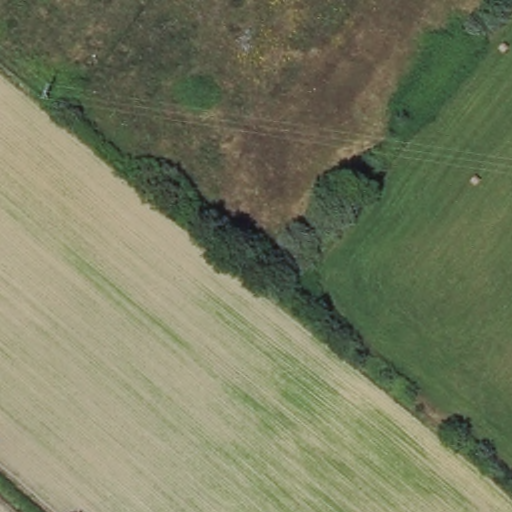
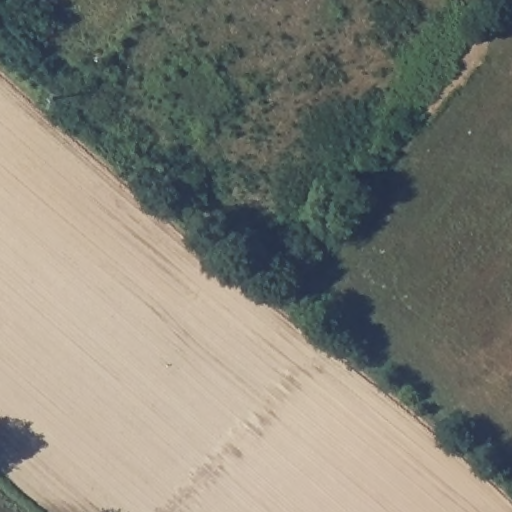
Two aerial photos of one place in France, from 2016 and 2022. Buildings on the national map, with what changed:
[]

